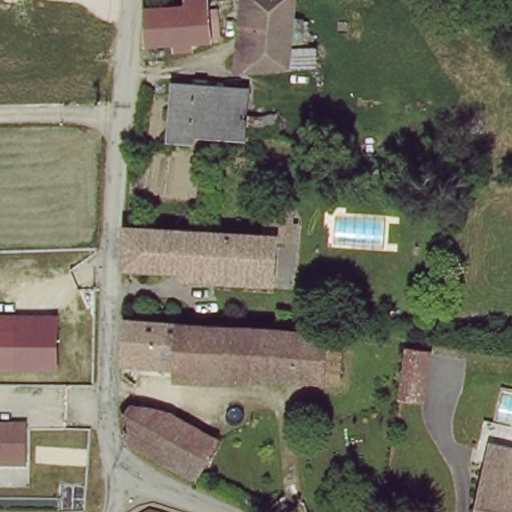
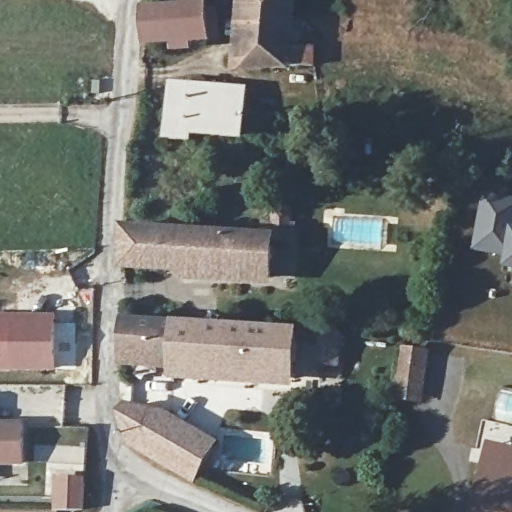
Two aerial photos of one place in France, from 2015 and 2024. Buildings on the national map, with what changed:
unchanged [(231,66),(238,0),(280,0),(276,45),(288,46),(301,48),(299,67),(286,67),(273,67),(231,66)]
unchanged [(184,5),(216,1),(217,40),(138,47),(140,15),(184,10),(184,5)]
unchanged [(167,137),(169,81),(238,82),(239,126),(191,127),(191,139),(167,137)]
new [(478,250),(487,198),(512,202),(512,257),(478,250)]
unchanged [(270,275),(129,265),(131,227),(273,236),(270,275)]
new [(511,268),(512,260),(512,268),(511,268)]
unchanged [(15,315),(55,314),(57,363),(15,365),(15,315)]
unchanged [(15,365),(0,365),(0,315),(15,315),(15,365)]
unchanged [(331,380),(171,369),(171,360),(121,359),(125,321),(334,335),(331,380)]
unchanged [(433,347),(424,401),(400,399),(406,345),(433,347)]
unchanged [(218,441),(197,482),(134,450),(120,418),(125,405),(161,411),(218,441)]
unchanged [(25,462),(0,462),(0,418),(25,417),(25,462)]
unchanged [(489,443),(512,447),(512,512),(480,512),(489,443)]

